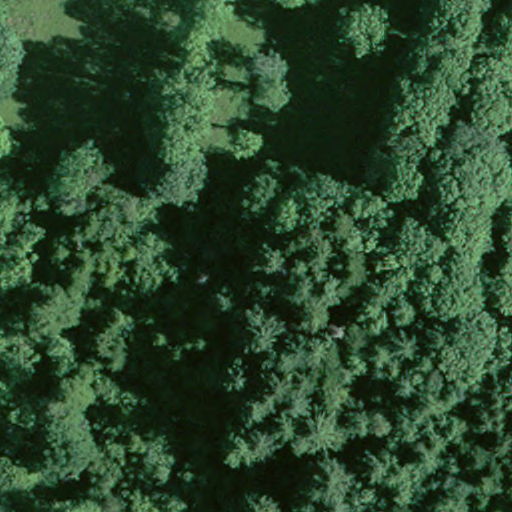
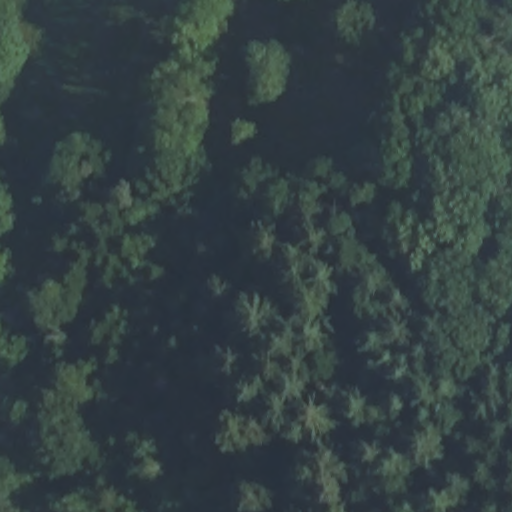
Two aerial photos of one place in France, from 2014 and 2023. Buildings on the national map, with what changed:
[]

